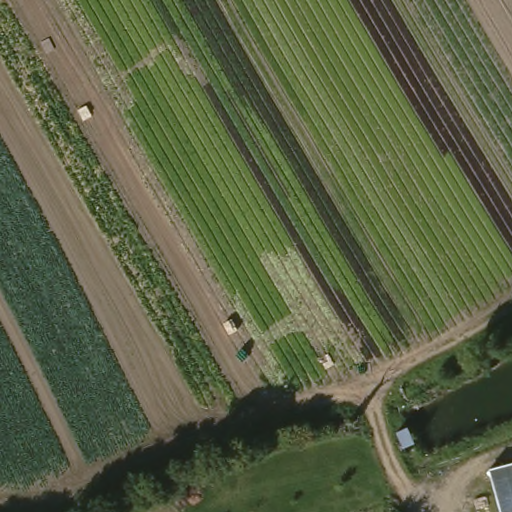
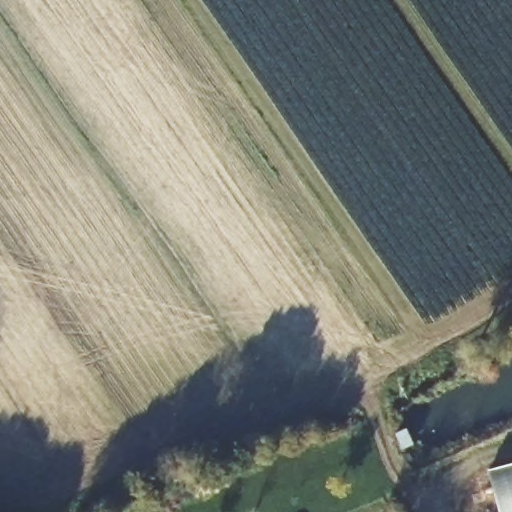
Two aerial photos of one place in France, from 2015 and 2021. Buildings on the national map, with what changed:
unchanged [(500,512),(488,469),(512,463),(512,512),(500,512)]

